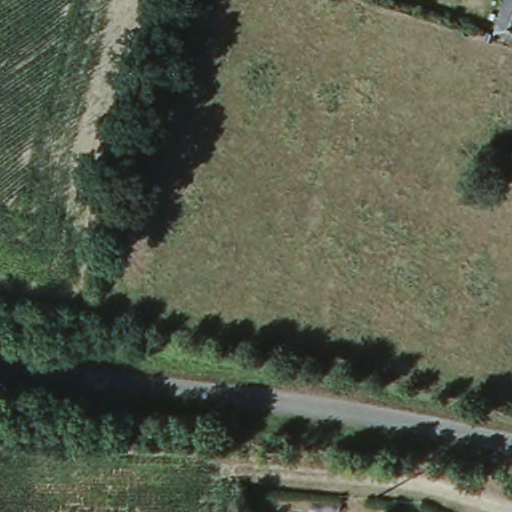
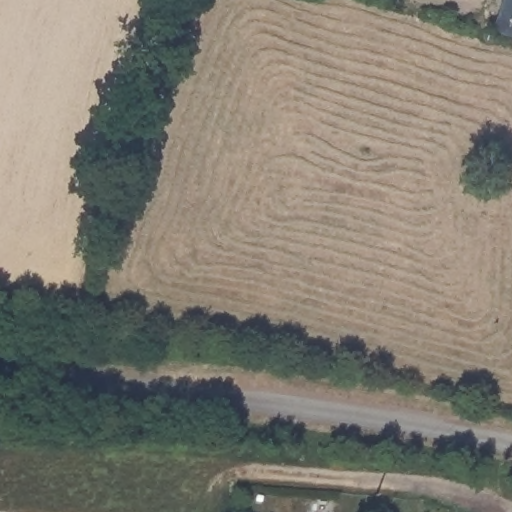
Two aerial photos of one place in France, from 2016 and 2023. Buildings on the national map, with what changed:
unchanged [(495,30),(505,0),(512,0),(512,35),(495,30)]

